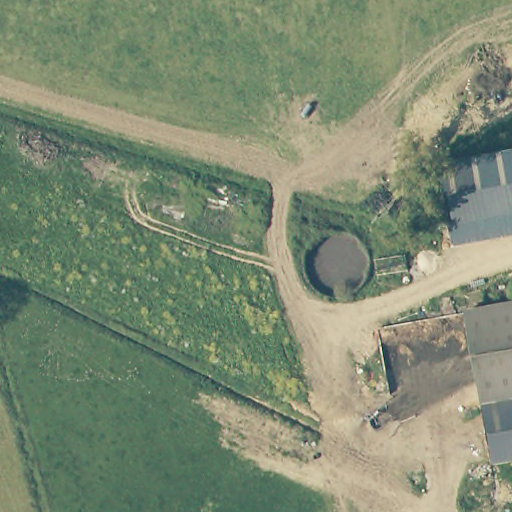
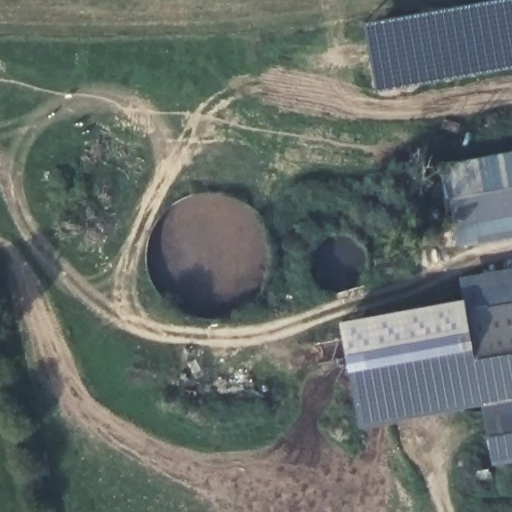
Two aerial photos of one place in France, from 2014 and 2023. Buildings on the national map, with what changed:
new [(375,92),(363,22),(484,0),(512,0),(512,67),(375,92)]
unchanged [(440,166),(512,152),(512,237),(455,248),(440,166)]
new [(467,312),(482,406),(358,428),(338,321),(463,298),(458,277),(512,267),(512,304),(467,312)]
unchanged [(491,462),(467,312),(512,304),(512,460),(491,462)]

